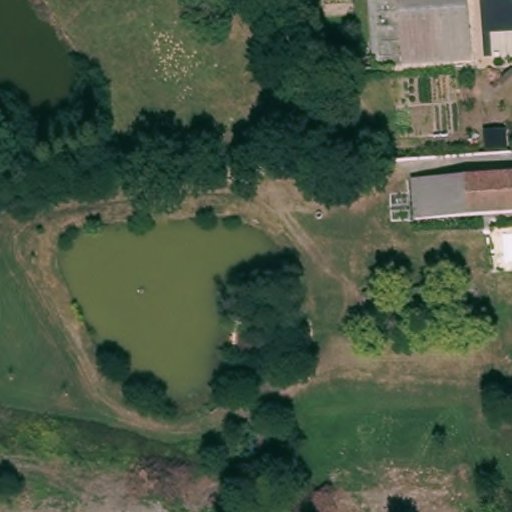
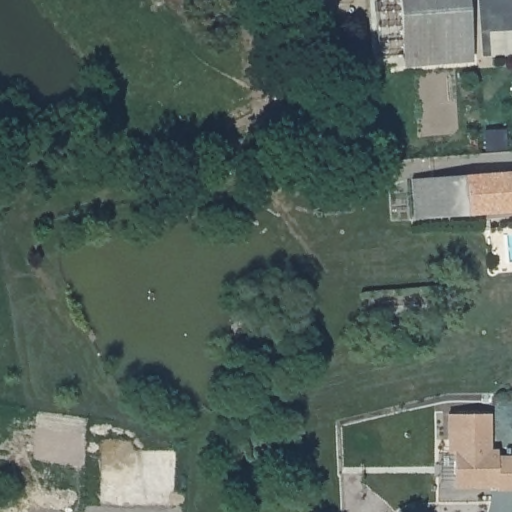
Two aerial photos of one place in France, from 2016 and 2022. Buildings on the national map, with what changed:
unchanged [(476,56),(407,64),(401,0),(471,0),(476,56)]
unchanged [(467,172),(469,171),(512,169),(512,209),(470,212),(467,172)]
unchanged [(467,172),(470,212),(416,217),(412,176),(467,172)]
new [(489,452),(498,451),(498,458),(512,458),(512,490),(498,490),(498,487),(455,488),(454,454),(449,454),(448,415),(489,414),(489,452)]

